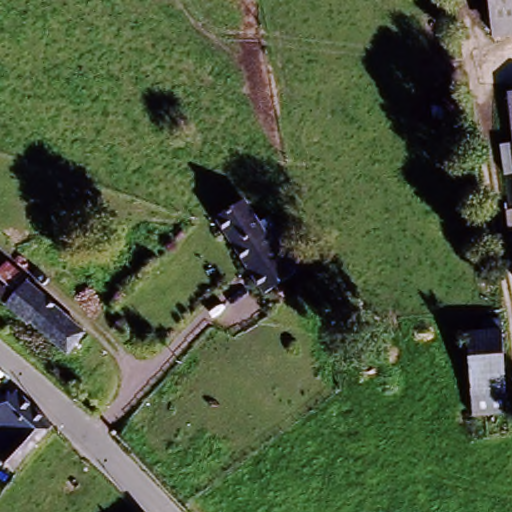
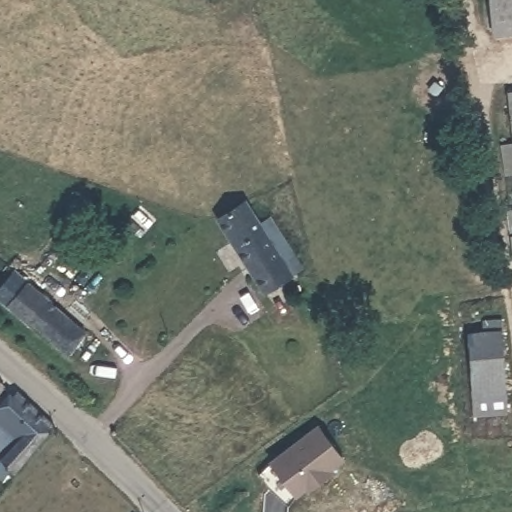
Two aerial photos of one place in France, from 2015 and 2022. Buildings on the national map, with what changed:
unchanged [(488,37),(484,0),(512,0),(512,36),(488,37)]
unchanged [(505,97),(512,96),(512,158),(505,97)]
unchanged [(290,277),(266,292),(225,230),(248,212),(290,277)]
unchanged [(63,356),(0,300),(0,277),(5,271),(81,337),(63,356)]
unchanged [(470,414),(468,394),(460,335),(494,332),(500,391),(501,411),(470,414)]
unchanged [(2,455),(6,445),(0,440),(0,418),(2,420),(18,401),(51,431),(18,469),(2,455)]
new [(307,487),(297,495),(272,462),(319,426),(344,459),(330,470),(332,472),(315,485),(309,490),(307,487)]

